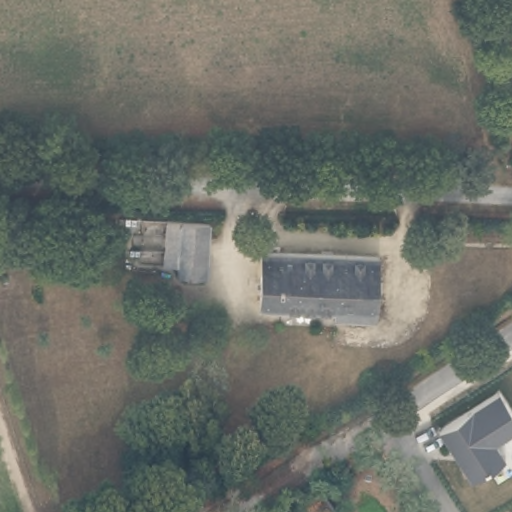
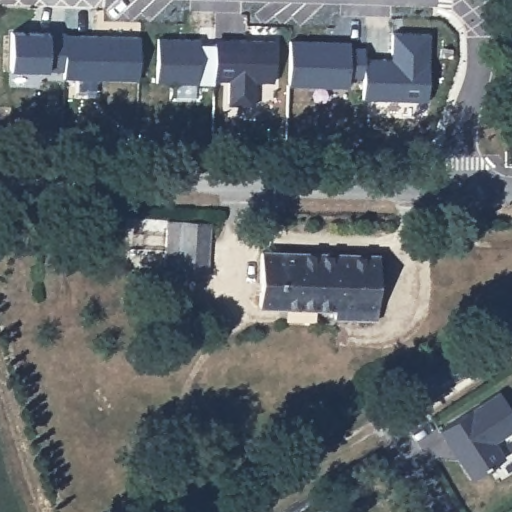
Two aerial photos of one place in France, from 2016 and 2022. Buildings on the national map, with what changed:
new [(11,32),(65,33),(63,71),(10,70),(11,32)]
new [(363,76),(363,57),(391,59),(392,32),(428,33),(427,100),(362,99),(363,76)]
new [(157,38),(199,40),(197,84),(156,82),(157,38)]
new [(214,40),(214,39),(238,40),(274,41),(273,82),(254,81),(253,106),(227,105),(228,81),(213,80),(214,45),(214,40)]
new [(289,41),(349,43),(348,49),(363,49),(363,57),(363,76),(348,76),(347,87),(287,85),(289,41)]
unchanged [(209,221),(206,276),(176,274),(177,264),(162,263),(165,219),(209,221)]
unchanged [(377,321),(335,320),(336,310),(260,307),(262,252),(379,256),(377,321)]
unchanged [(512,433),(496,446),(503,460),(471,482),(440,430),(500,392),(512,410),(512,433)]

